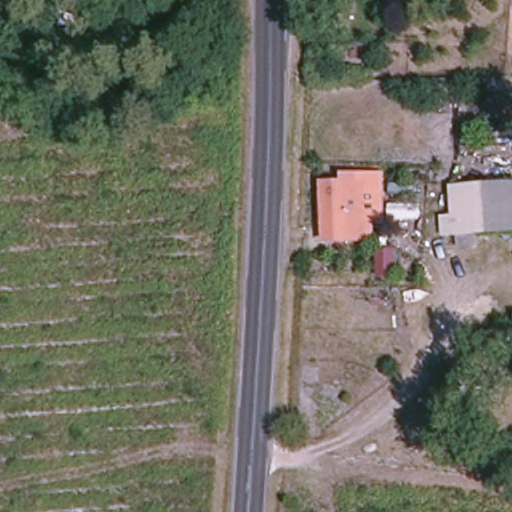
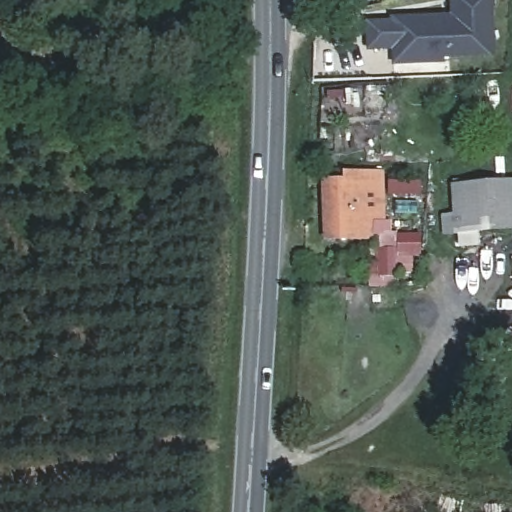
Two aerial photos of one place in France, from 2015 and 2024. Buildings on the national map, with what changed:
new [(388,19),(433,17),(448,16),(448,7),(447,7),(447,0),(486,0),(486,5),(488,53),(435,56),(436,61),(390,62),(389,47),(364,48),(363,24),(388,23),(388,19)]
unchanged [(328,246),(327,186),(347,186),(347,176),(367,176),(369,244),(328,246)]
unchanged [(454,217),(452,190),(512,188),(512,232),(455,234),(441,235),(440,218),(454,217)]

